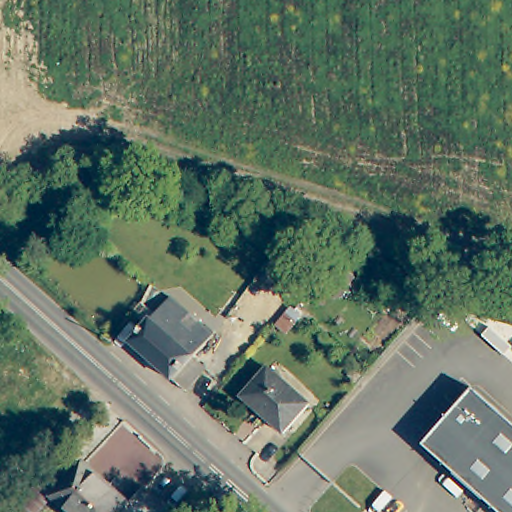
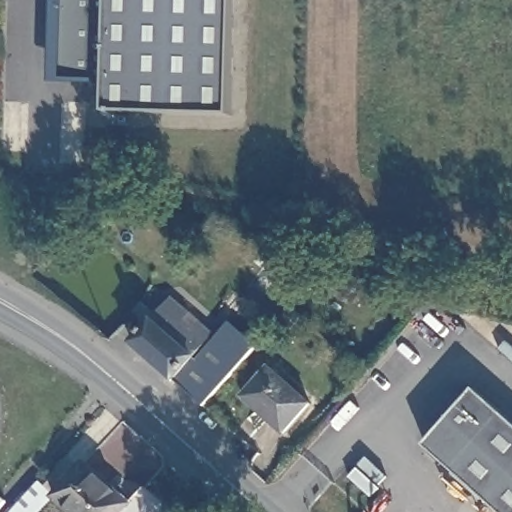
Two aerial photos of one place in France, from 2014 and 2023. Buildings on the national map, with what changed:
new [(105,83),(49,83),(51,0),(233,0),(229,115),(107,111),(105,83)]
unchanged [(357,279),(340,297),(325,283),(341,265),(357,279)]
unchanged [(168,294),(182,306),(175,315),(188,325),(196,317),(210,330),(190,352),(203,364),(183,385),(129,338),(168,294)]
unchanged [(287,333),(278,325),(292,308),(293,309),(302,317),(287,333)]
unchanged [(220,318),(212,327),(205,321),(212,311),(220,318)]
unchanged [(312,405),(285,434),(244,397),(270,367),(312,405)]
unchanged [(512,512),(499,512),(424,445),(474,390),(512,423),(512,512)]
unchanged [(85,463),(107,483),(109,482),(131,502),(123,512),(72,512),(55,497),(84,463),(85,463)]
unchanged [(51,502),(42,512),(11,512),(38,482),(55,497),(51,502)]
unchanged [(143,490),(169,512),(123,512),(131,502),(143,490)]

